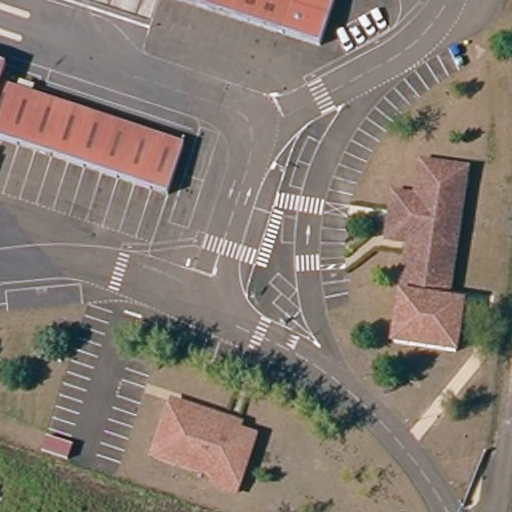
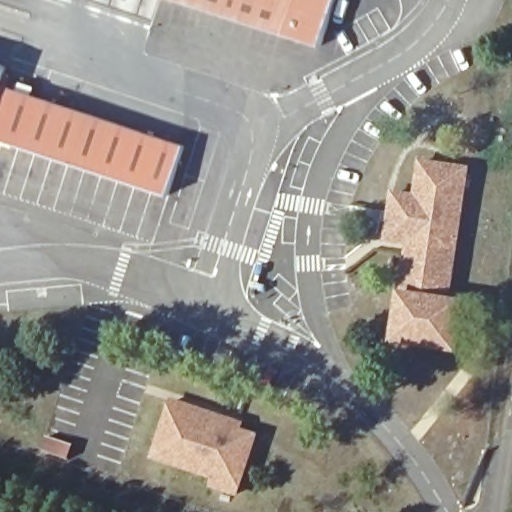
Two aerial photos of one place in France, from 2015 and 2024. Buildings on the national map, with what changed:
unchanged [(321,36),(211,0),(332,0),(321,36)]
unchanged [(2,66),(0,72),(0,65),(2,66)]
unchanged [(179,147),(163,196),(0,142),(0,87),(179,147)]
unchanged [(410,193),(416,159),(462,166),(441,298),(457,300),(449,348),(388,338),(403,239),(389,237),(381,236),(385,209),(388,190),(410,193)]
unchanged [(216,482),(219,474),(158,453),(177,397),(223,412),(245,420),(242,427),(259,432),(244,477),(240,489),(216,482)]

